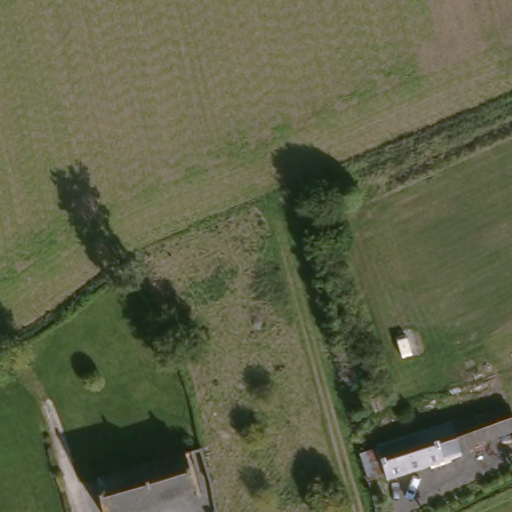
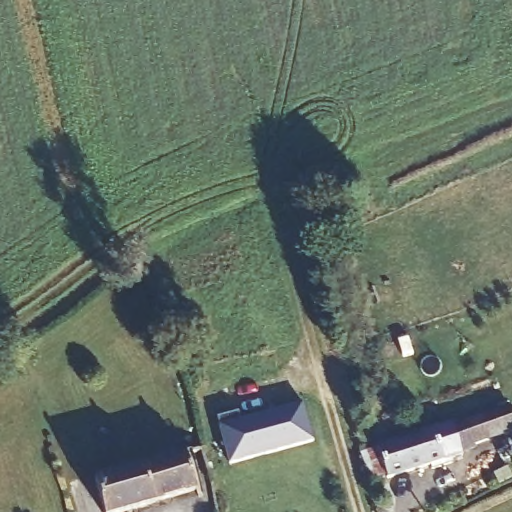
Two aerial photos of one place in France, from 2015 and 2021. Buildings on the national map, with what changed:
new [(218,416),(238,411),(240,418),(258,413),(259,416),(303,401),(314,438),(231,461),(218,416)]
unchanged [(452,427),(507,410),(512,425),(512,435),(461,453),(452,427)]
unchanged [(461,457),(387,482),(378,451),(452,427),(461,453),(461,457)]
unchanged [(183,458),(193,498),(133,512),(103,512),(94,479),(183,458)]

